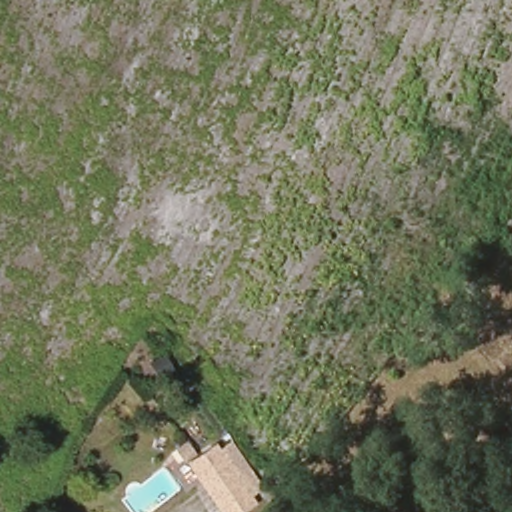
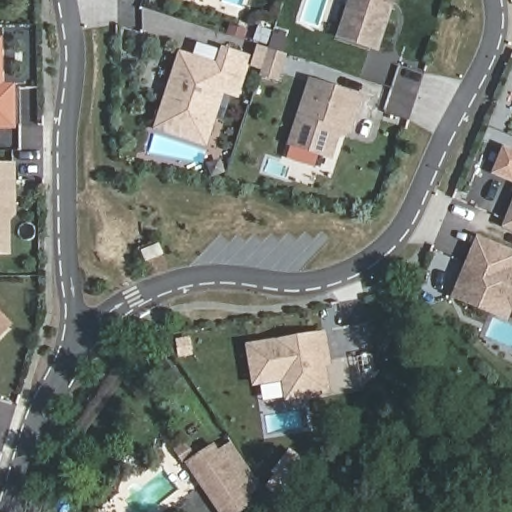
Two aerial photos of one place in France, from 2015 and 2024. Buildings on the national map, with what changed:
new [(187,0),(196,0),(196,3),(187,0)]
new [(348,0),(395,0),(378,51),(336,36),(348,0)]
new [(0,37),(3,37),(4,84),(16,84),(16,129),(0,129),(0,37)]
new [(225,95),(208,149),(153,131),(179,50),(217,63),(222,48),(252,58),(238,99),(225,95)]
new [(309,78),(364,96),(351,136),(346,134),(345,140),(339,138),(332,161),(287,145),(309,78)]
new [(507,151),(512,153),(512,180),(497,174),(507,151)]
new [(0,163),(16,163),(16,215),(11,221),(11,255),(0,255),(0,163)]
new [(500,229),(512,201),(512,233),(500,229)]
new [(509,322),(452,298),(476,237),(512,251),(512,313),(509,322)]
new [(0,312),(13,324),(0,337),(0,312)]
new [(284,402),(281,384),(252,388),(245,344),(325,332),(331,366),(326,367),(330,394),(284,402)]
unchanged [(244,512),(228,512),(226,509),(194,463),(215,447),(248,492),(256,503),(244,512)]

